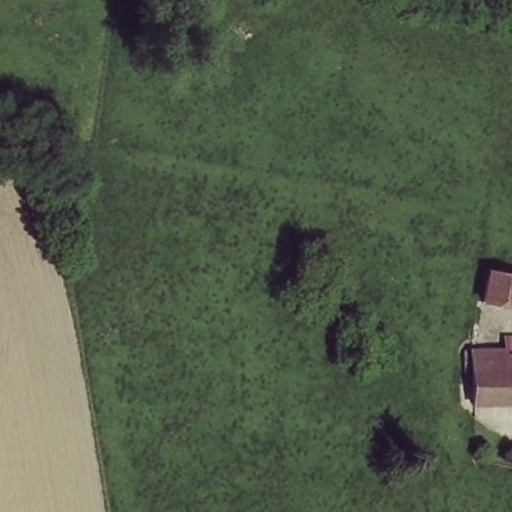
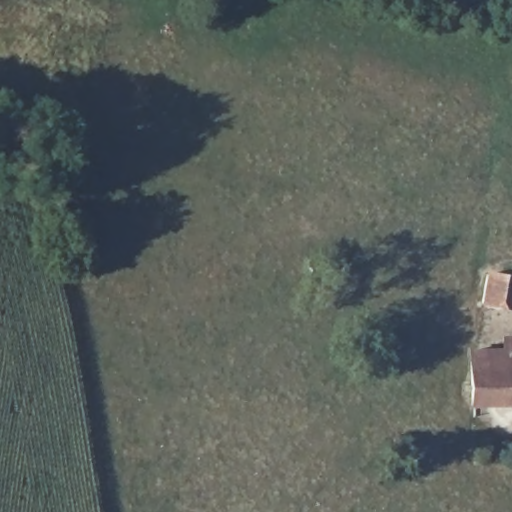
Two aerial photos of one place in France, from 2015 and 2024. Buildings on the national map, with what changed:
unchanged [(484,307),(490,278),(512,286),(512,312),(484,307)]
unchanged [(510,352),(510,337),(512,337),(512,407),(475,408),(473,352),(510,352)]

